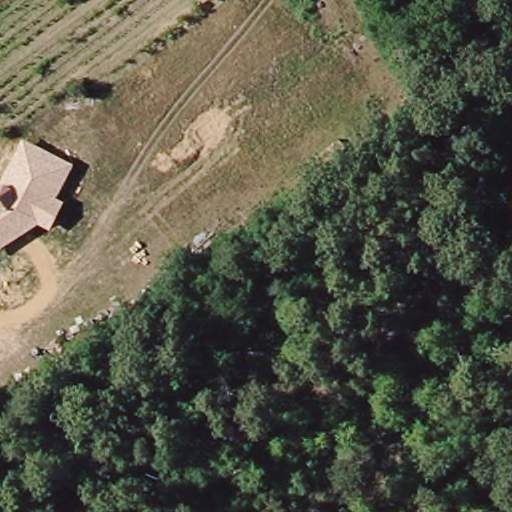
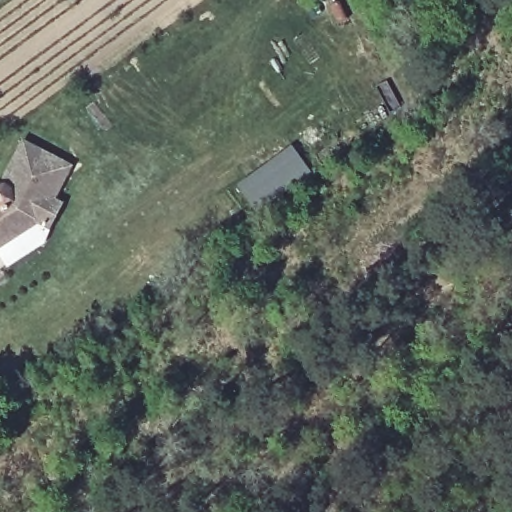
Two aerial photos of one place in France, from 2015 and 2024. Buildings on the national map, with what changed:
unchanged [(74,165),(56,200),(65,204),(51,233),(37,225),(0,250),(0,185),(21,139),(74,165)]
new [(258,213),(237,184),(291,146),(311,173),(258,213)]

